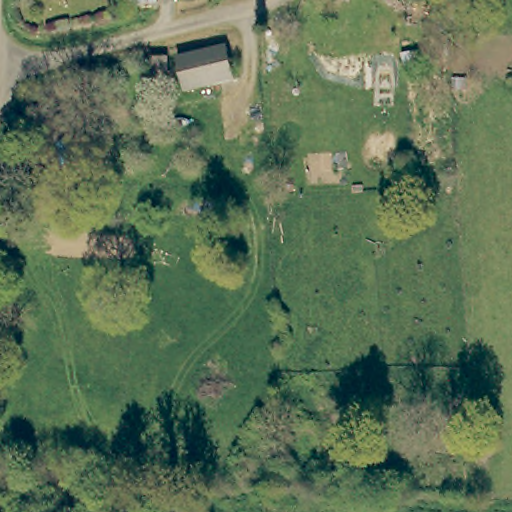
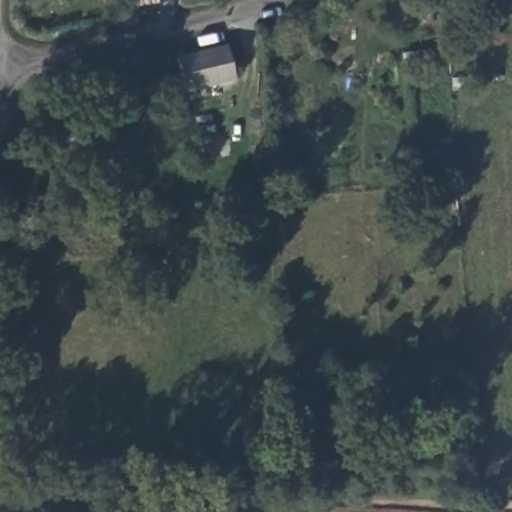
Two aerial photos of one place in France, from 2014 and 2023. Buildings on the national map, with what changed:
unchanged [(227,52),(234,85),(186,97),(179,62),(227,52)]
unchanged [(172,61),(171,89),(155,88),(156,61),(172,61)]

